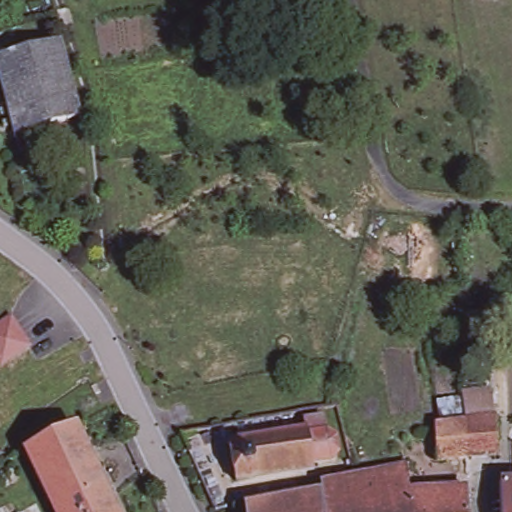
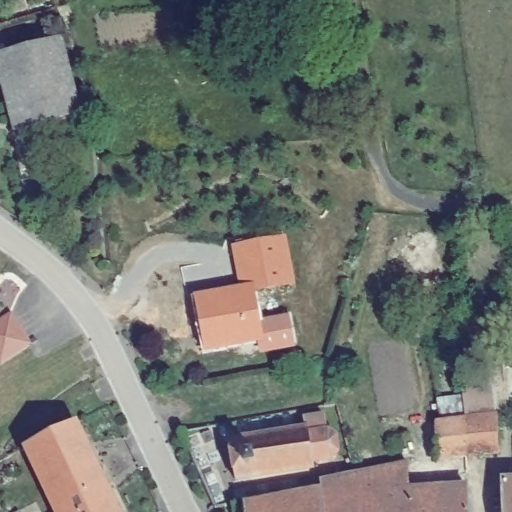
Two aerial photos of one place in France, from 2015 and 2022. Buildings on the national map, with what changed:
unchanged [(0,79),(0,49),(62,34),(73,82),(5,100),(0,79)]
unchanged [(5,100),(73,82),(76,95),(80,109),(11,126),(7,113),(5,100)]
new [(198,300),(243,291),(235,249),(279,241),(282,240),(291,285),(252,291),(260,326),(287,320),(292,343),(262,349),(260,337),(207,348),(198,300)]
unchanged [(0,326),(12,318),(30,346),(2,364),(1,360),(0,359),(0,326)]
unchanged [(0,360),(0,359),(1,360),(0,360)]
unchanged [(437,428),(467,425),(467,401),(499,398),(500,421),(501,458),(469,462),(438,466),(437,428)]
unchanged [(333,451),(315,455),(316,463),(237,477),(231,437),(307,423),(306,416),(327,412),(329,427),(333,426),(337,430),(339,444),(339,445),(338,445),(338,446),(337,448),(336,449),(336,450),(335,450),(334,450),(333,451)]
unchanged [(115,512),(53,512),(22,445),(72,421),(115,512)]
unchanged [(406,512),(323,512),(321,490),(319,491),(318,486),(354,477),(405,464),(406,492),(406,512)]
unchanged [(502,481),(512,481),(512,512),(504,512),(502,481)]
unchanged [(465,487),(466,512),(406,512),(406,492),(465,487)]
unchanged [(321,490),(323,512),(243,512),(242,504),(319,491),(321,490)]

